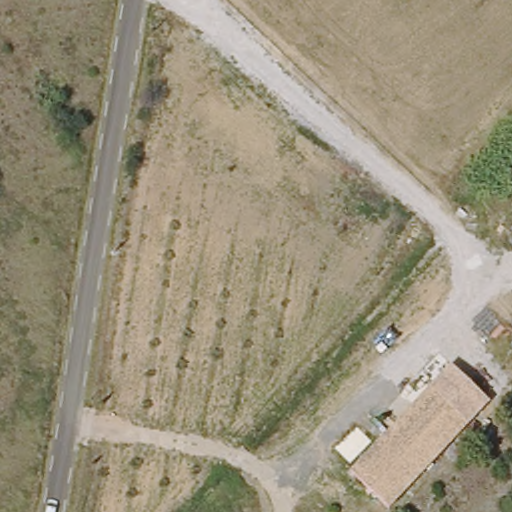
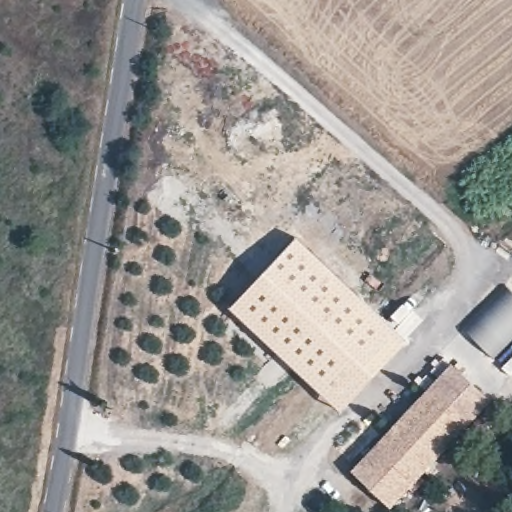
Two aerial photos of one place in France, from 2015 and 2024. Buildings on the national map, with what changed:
new [(296,236),(393,327),(405,338),(407,340),(339,412),(229,307),(296,236)]
new [(511,290),(512,292),(512,338),(493,357),(469,332),(511,290)]
unchanged [(450,360),(490,400),(474,419),(433,380),(450,360)]
unchanged [(433,380),(474,419),(395,507),(354,467),(433,380)]

